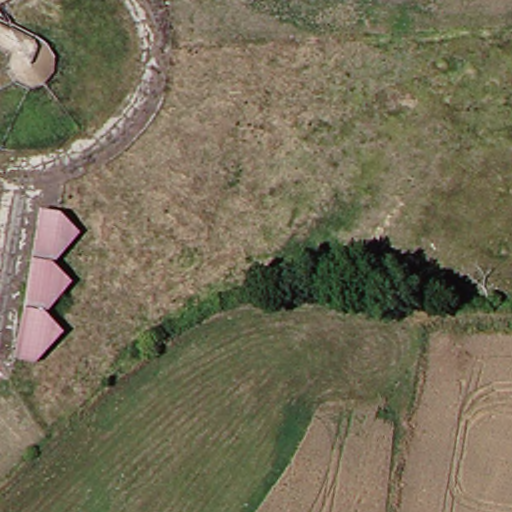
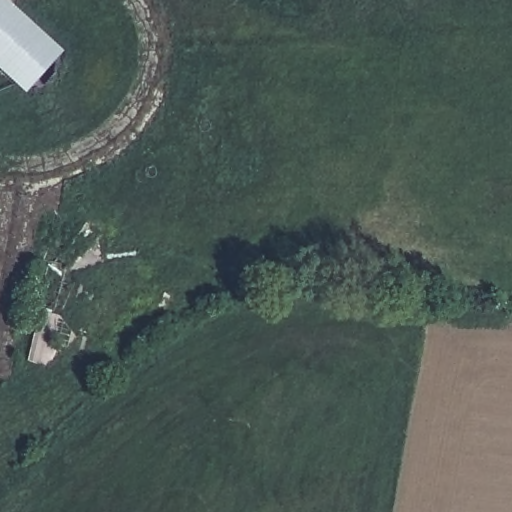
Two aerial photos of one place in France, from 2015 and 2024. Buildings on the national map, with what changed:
new [(0,0),(6,0),(64,52),(26,93),(0,70),(0,0)]
unchanged [(91,233),(63,267),(85,286),(61,319),(77,335),(53,363),(33,360),(52,212),(72,215),(91,233)]

